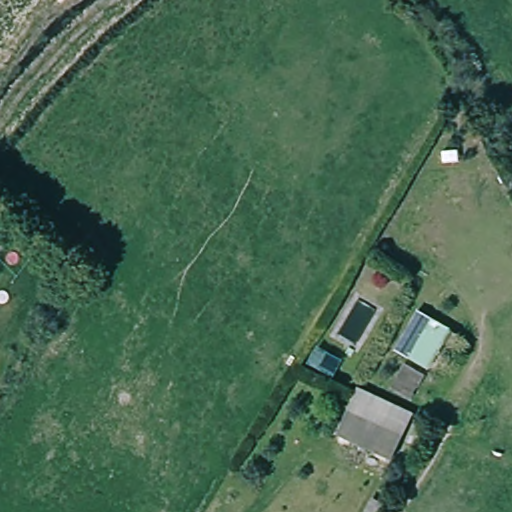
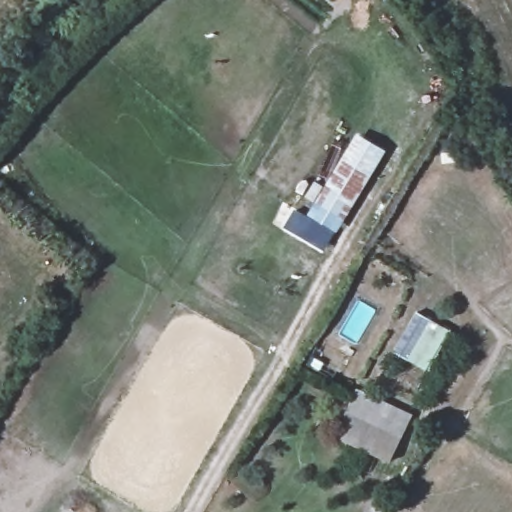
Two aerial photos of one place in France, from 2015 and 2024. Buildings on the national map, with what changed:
new [(358,133),(387,151),(339,232),(309,214),(358,133)]
unchanged [(429,370),(393,349),(417,310),(452,329),(429,370)]
unchanged [(357,391),(414,415),(390,465),(335,440),(357,391)]

